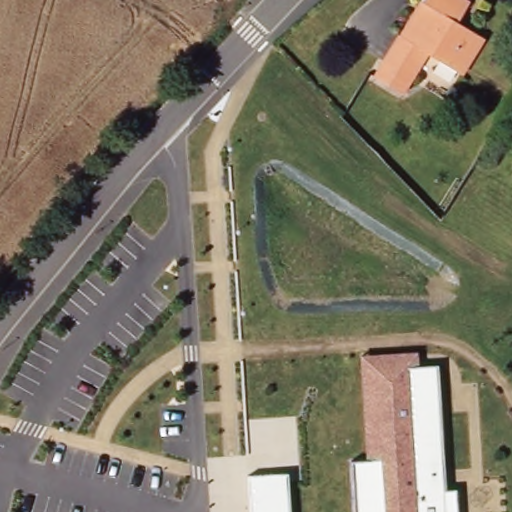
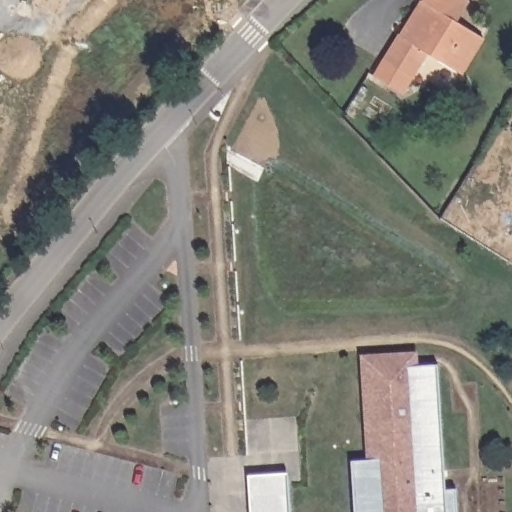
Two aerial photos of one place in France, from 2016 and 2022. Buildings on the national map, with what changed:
unchanged [(461,74),(427,53),(402,94),(374,76),(399,34),(400,35),(422,0),(465,0),(469,2),(457,22),(483,38),(461,74)]
unchanged [(414,366),(436,365),(443,490),(455,490),(456,512),(352,512),(350,464),(366,460),(360,355),(414,352),(414,366)]
unchanged [(283,473),(285,512),(247,512),(245,476),(283,473)]

